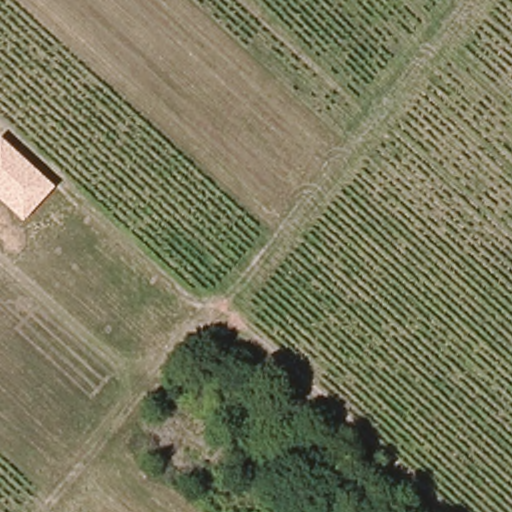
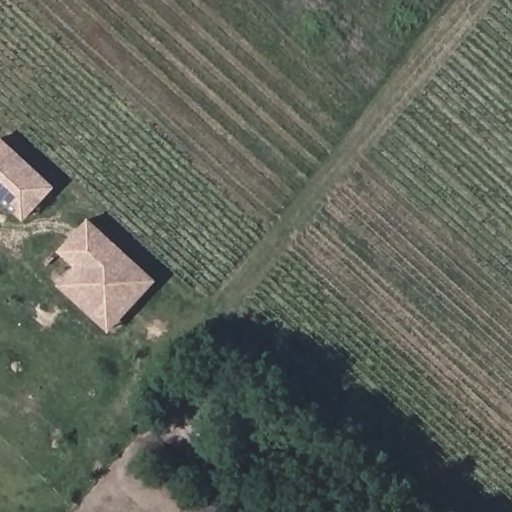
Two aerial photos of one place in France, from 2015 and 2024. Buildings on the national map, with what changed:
unchanged [(22,220),(0,200),(0,136),(54,185),(22,220)]
new [(107,332),(56,285),(72,266),(56,250),(87,217),(156,280),(107,332)]

